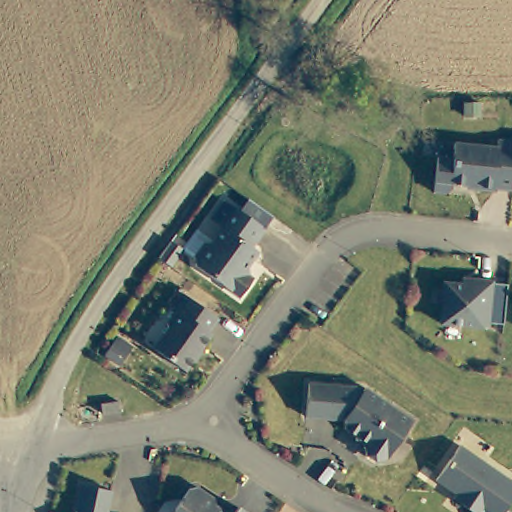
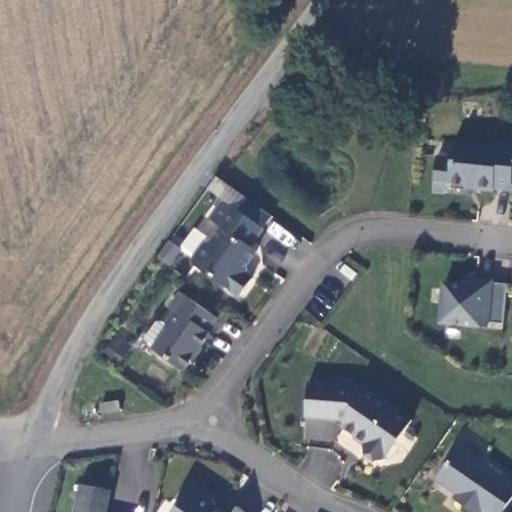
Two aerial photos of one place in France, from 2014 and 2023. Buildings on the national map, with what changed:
unchanged [(492,187),(474,186),(474,183),(450,181),(450,186),(444,191),(432,189),(435,154),(450,156),(452,140),(495,144),(496,137),(512,138),(512,161),(510,179),(510,187),(492,185),(492,187)]
unchanged [(512,161),(512,179),(510,179),(512,161)]
unchanged [(260,226),(246,244),(252,248),(243,262),(245,270),(243,272),(247,276),(235,293),(190,262),(189,255),(200,239),(207,237),(216,224),(205,216),(219,197),(260,226)]
unchanged [(156,260),(167,242),(179,251),(166,267),(156,260)]
unchanged [(500,326),(485,325),(485,330),(438,325),(442,285),(470,287),(470,282),(505,286),(500,326)]
unchanged [(207,333),(210,335),(184,372),(153,351),(167,330),(166,325),(175,311),(170,308),(181,293),(217,320),(207,333)]
unchanged [(124,348),(113,364),(101,356),(111,340),(124,348)]
unchanged [(300,412),(302,378),(348,382),(355,387),(336,416),(300,412)]
unchanged [(380,452),(377,456),(369,457),(358,451),(357,442),(360,439),(338,425),(336,416),(355,387),(358,383),(406,417),(380,453),(380,452)]
unchanged [(102,416),(101,406),(119,404),(120,413),(102,416)]
unchanged [(474,512),(472,512),(446,495),(449,491),(428,477),(453,441),(512,481),(512,485),(497,506),(493,512),(481,512),(476,509),(474,512)]
unchanged [(105,487),(100,512),(69,512),(75,480),(105,487)]
unchanged [(190,487),(208,500),(209,507),(217,512),(168,512),(184,490),(190,487)]
unchanged [(507,512),(493,512),(497,506),(507,512)]
unchanged [(230,512),(232,508),(238,512),(230,512)]

